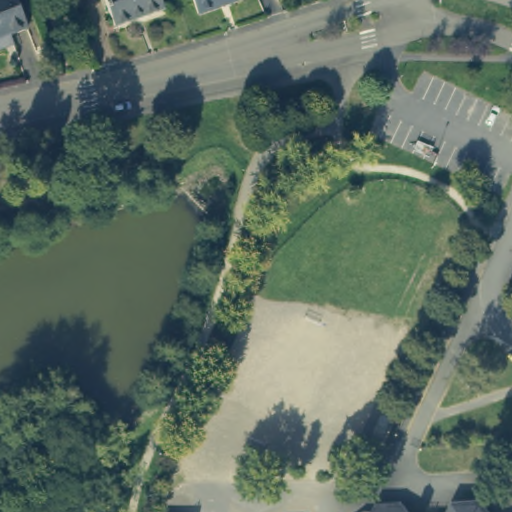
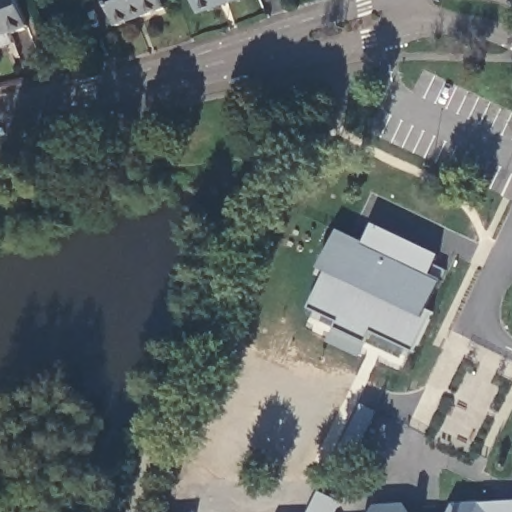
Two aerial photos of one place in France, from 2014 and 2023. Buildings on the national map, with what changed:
unchanged [(29,25),(0,37),(0,0),(21,0),(29,25)]
unchanged [(167,6),(117,24),(109,0),(165,0),(167,6)]
unchanged [(197,14),(192,0),(238,0),(197,14)]
new [(431,273),(442,279),(428,309),(435,312),(414,351),(373,333),(361,356),(330,342),(338,322),(309,308),(326,272),(320,270),(338,229),(365,242),(373,223),(441,255),(431,273)]
unchanged [(410,500),(418,512),(378,512),(383,501),(410,500)]
new [(495,512),(487,501),(512,500),(512,512),(495,512)]
unchanged [(487,501),(495,512),(456,512),(460,503),(487,501)]

